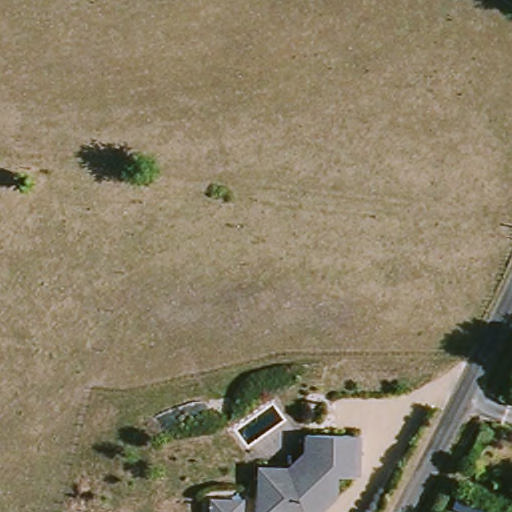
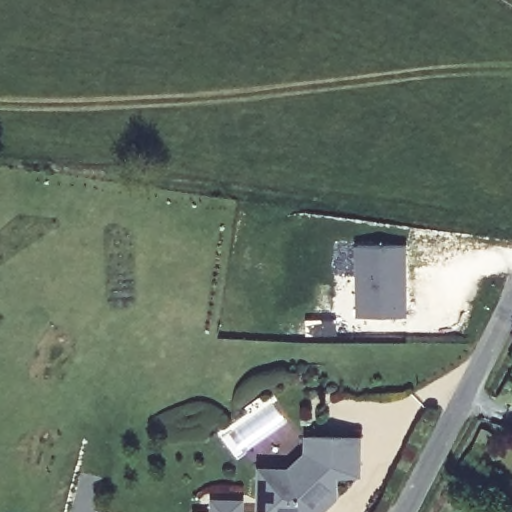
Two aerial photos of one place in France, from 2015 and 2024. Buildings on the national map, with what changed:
new [(357,245),(405,245),(404,278),(400,278),(401,287),(404,290),(404,317),(356,317),(357,245)]
unchanged [(294,488),(305,478),(305,439),(359,440),(358,477),(329,478),(327,502),(319,512),(257,512),(257,487),(294,488)]
unchanged [(211,512),(212,499),(241,500),(241,512),(211,512)]

